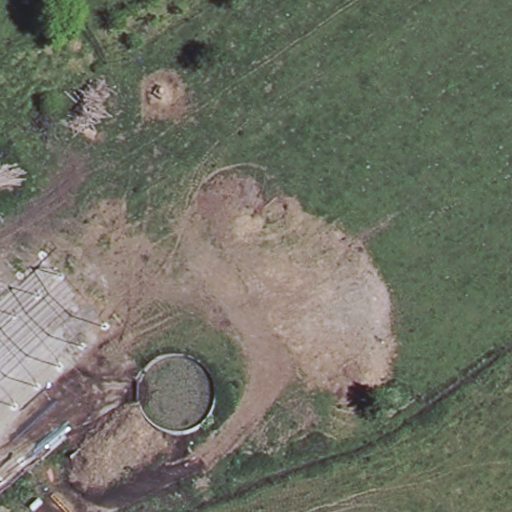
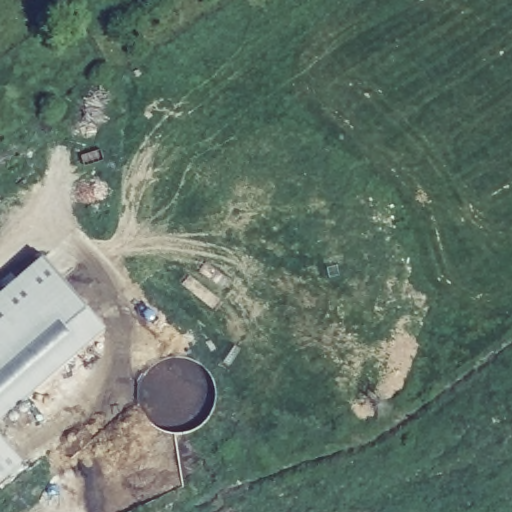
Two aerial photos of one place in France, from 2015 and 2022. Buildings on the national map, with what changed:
new [(0,423),(0,294),(43,257),(105,330),(0,423)]
new [(0,437),(23,464),(0,484),(0,437)]

